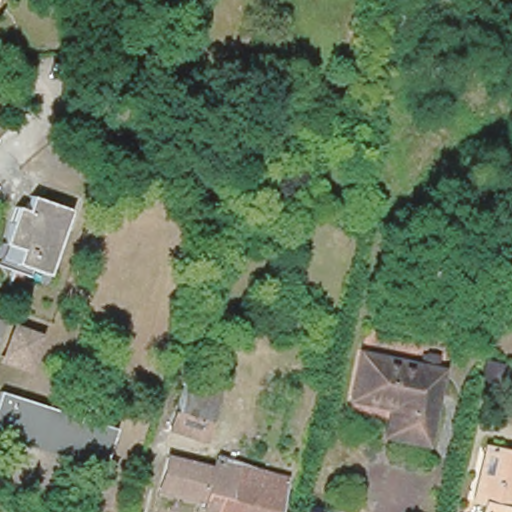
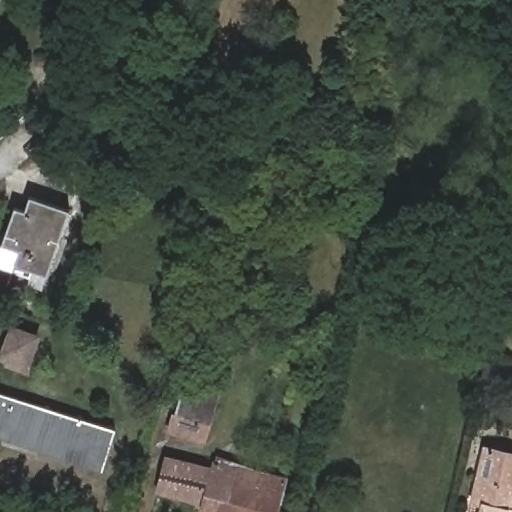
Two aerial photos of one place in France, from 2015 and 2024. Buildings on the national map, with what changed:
unchanged [(0,246),(15,201),(25,203),(30,190),(69,202),(47,271),(34,266),(30,276),(0,265),(0,246)]
unchanged [(21,366),(0,359),(9,335),(29,342),(21,366)]
demolished [(422,444),(390,438),(395,411),(345,401),(355,355),(436,371),(422,444)]
unchanged [(197,432),(168,423),(184,370),(215,380),(197,432)]
unchanged [(0,437),(0,393),(114,430),(104,460),(101,467),(2,437),(0,437)]
unchanged [(487,494),(480,492),(492,441),(512,445),(512,512),(483,512),(487,494)]
unchanged [(277,512),(204,512),(205,503),(160,492),(170,457),(214,467),(215,462),(253,472),(260,473),(285,479),(277,512)]

